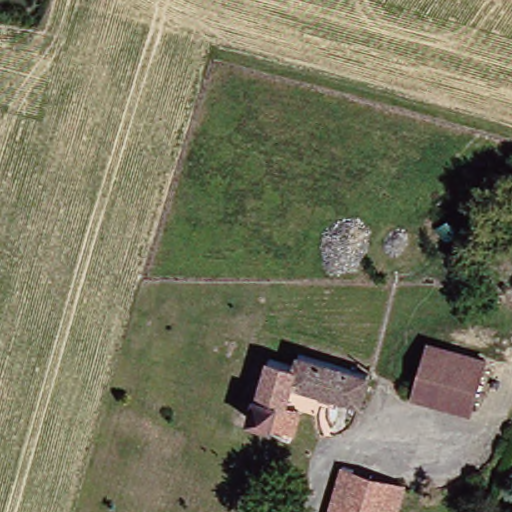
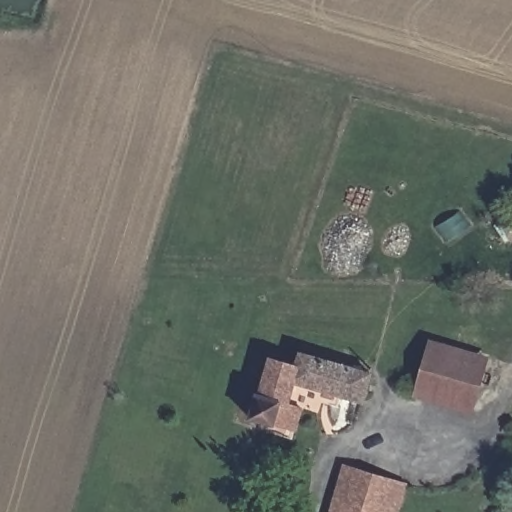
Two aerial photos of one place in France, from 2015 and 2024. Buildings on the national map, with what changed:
unchanged [(442,346),(495,362),(489,388),(484,401),(430,383),(435,366),(442,346)]
unchanged [(320,403),(325,391),(300,382),(305,370),(307,356),(322,360),(379,379),(371,406),(350,398),(345,413),(320,403)]
unchanged [(292,408),(284,404),(274,428),(251,420),(259,393),(264,394),(274,360),(305,370),(300,382),(292,408)]
unchanged [(358,465),(419,484),(414,502),(410,501),(407,510),(350,493),(358,465)]
unchanged [(407,510),(407,512),(343,512),(350,493),(407,510)]

